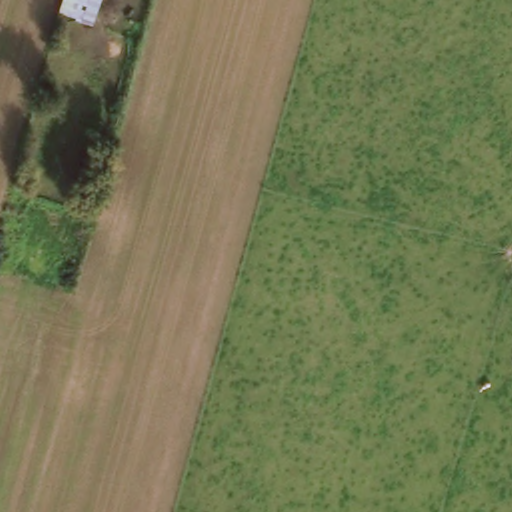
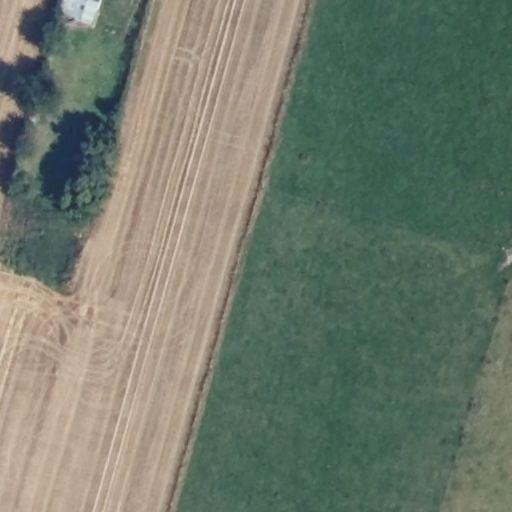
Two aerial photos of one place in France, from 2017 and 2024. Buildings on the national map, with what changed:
unchanged [(100,25),(57,15),(61,0),(105,0),(100,25)]

